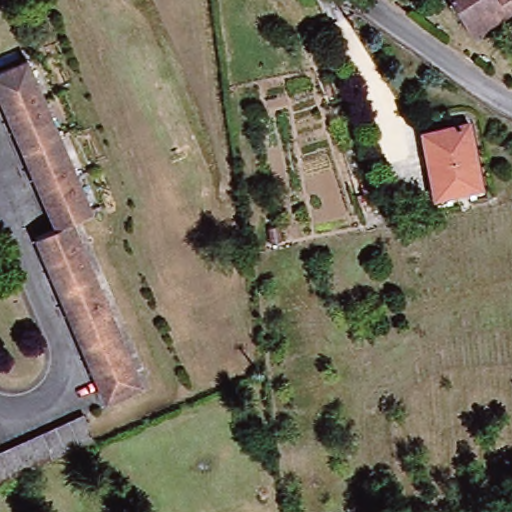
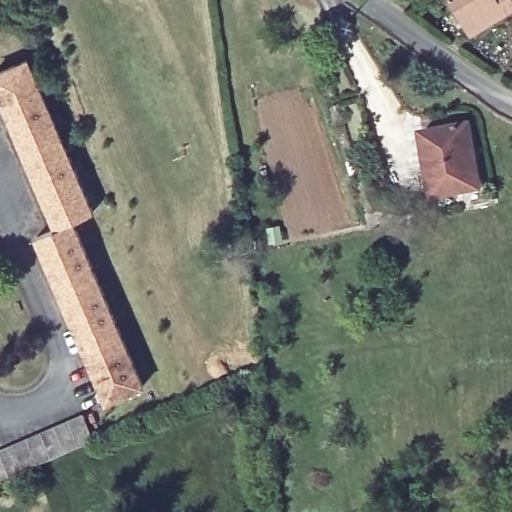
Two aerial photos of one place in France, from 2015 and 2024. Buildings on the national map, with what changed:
unchanged [(504,0),(511,10),(468,35),(443,0),(504,0)]
unchanged [(46,231),(33,196),(0,114),(0,71),(25,61),(86,213),(70,220),(139,393),(100,409),(31,238),(46,231)]
unchanged [(481,194),(431,199),(424,135),(471,128),(481,194)]
unchanged [(90,440),(0,482),(0,456),(80,419),(90,440)]

